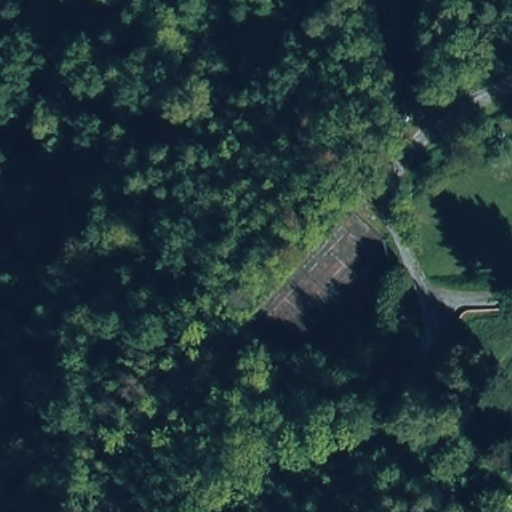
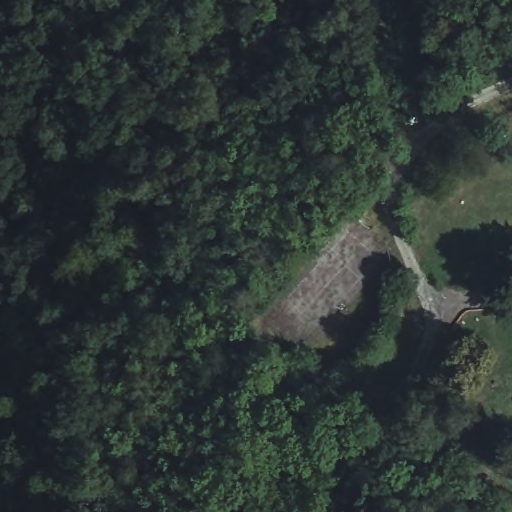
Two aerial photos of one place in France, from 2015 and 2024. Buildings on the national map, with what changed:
[]

